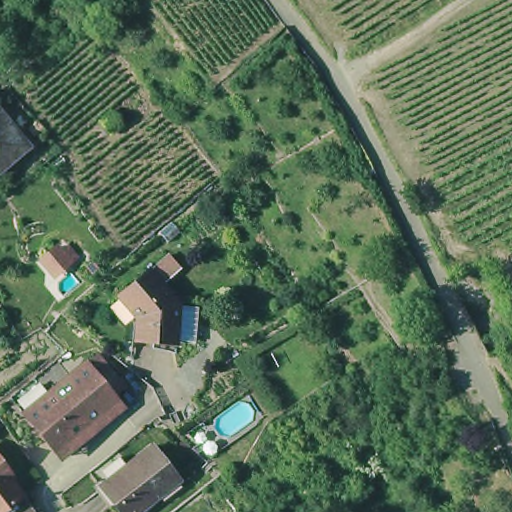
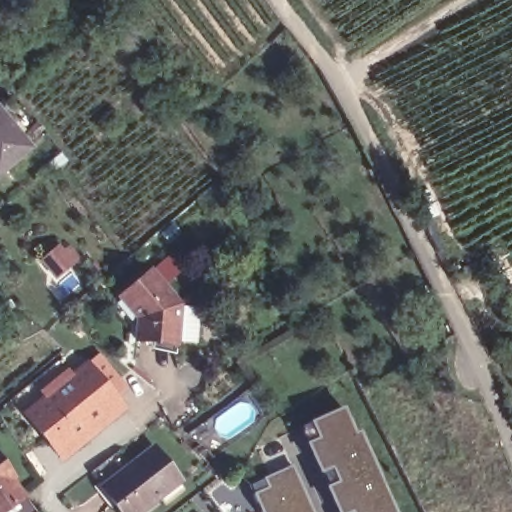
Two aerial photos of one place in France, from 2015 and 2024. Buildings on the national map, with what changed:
unchanged [(0,173),(0,109),(31,146),(0,173)]
new [(65,253),(71,248),(79,258),(72,264),(57,276),(45,260),(60,247),(65,253)]
unchanged [(141,330),(143,307),(125,285),(155,259),(185,294),(182,334),(141,330)]
unchanged [(61,453),(30,413),(93,363),(105,354),(131,387),(128,389),(120,395),(125,402),(130,409),(67,459),(61,453)]
new [(320,435),(313,419),(347,406),(357,430),(363,428),(397,512),(354,512),(353,510),(349,512),(340,512),(328,484),(340,481),(334,465),(321,471),(306,440),(320,435)]
unchanged [(140,512),(132,512),(108,482),(160,442),(186,475),(140,512)]
unchanged [(0,462),(13,478),(11,479),(37,512),(0,512),(0,462)]
new [(270,487),(266,477),(295,464),(316,512),(263,512),(255,494),(270,487)]

